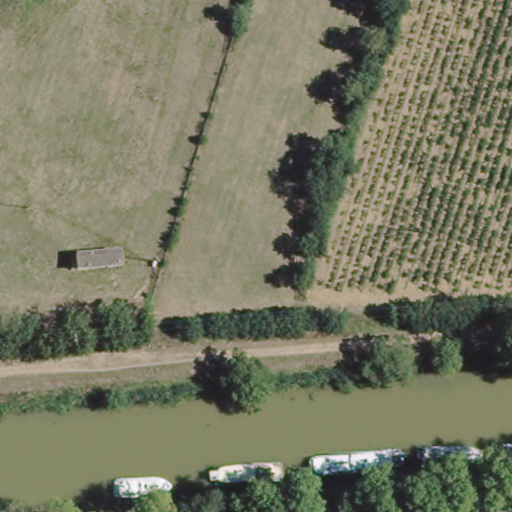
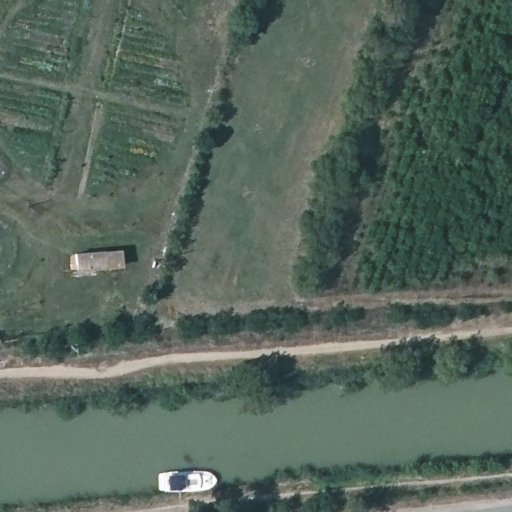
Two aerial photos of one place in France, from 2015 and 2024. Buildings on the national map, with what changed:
unchanged [(113,250),(126,250),(125,255),(125,265),(115,265),(83,268),(81,252),(113,250)]

